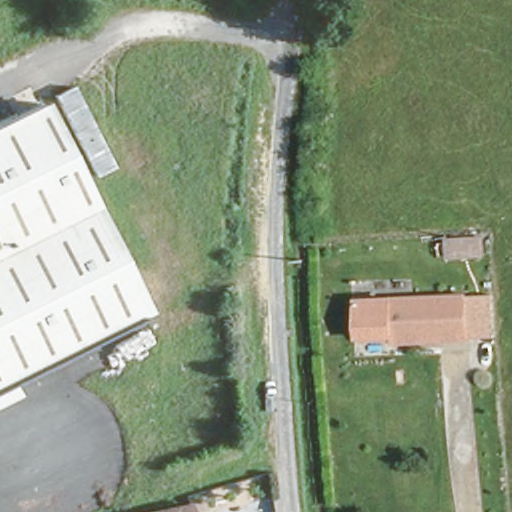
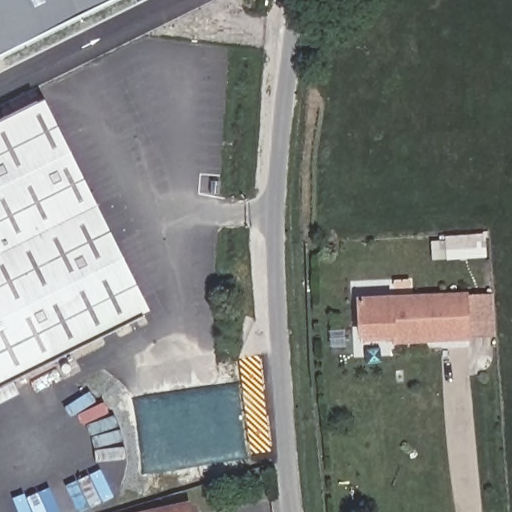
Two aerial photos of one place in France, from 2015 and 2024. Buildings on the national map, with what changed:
new [(0,0),(120,0),(0,59),(0,0)]
unchanged [(146,312),(0,386),(0,117),(40,97),(146,312)]
unchanged [(360,294),(455,291),(467,290),(469,333),(460,334),(401,336),(401,328),(362,330),(360,294)]
unchanged [(191,501),(194,512),(141,512),(191,501)]

